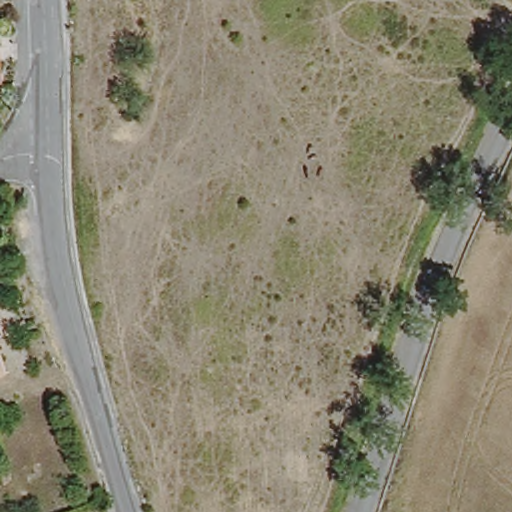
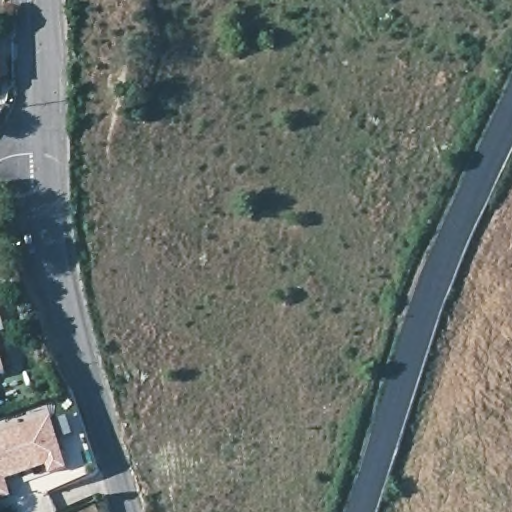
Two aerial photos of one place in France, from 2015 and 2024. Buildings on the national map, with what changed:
unchanged [(0,374),(0,363),(2,373),(0,374)]
new [(69,468),(55,473),(50,458),(8,471),(15,491),(0,496),(0,437),(54,420),(69,468)]

